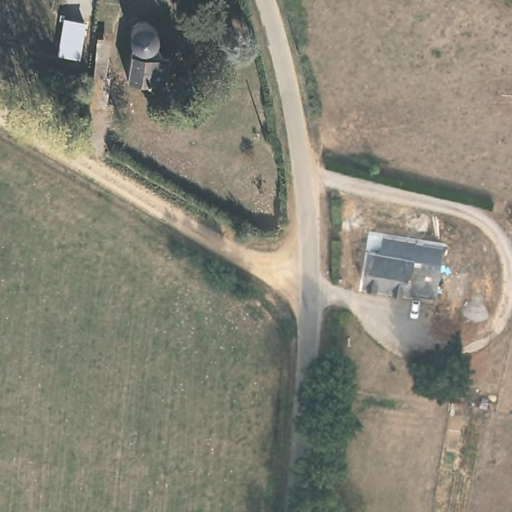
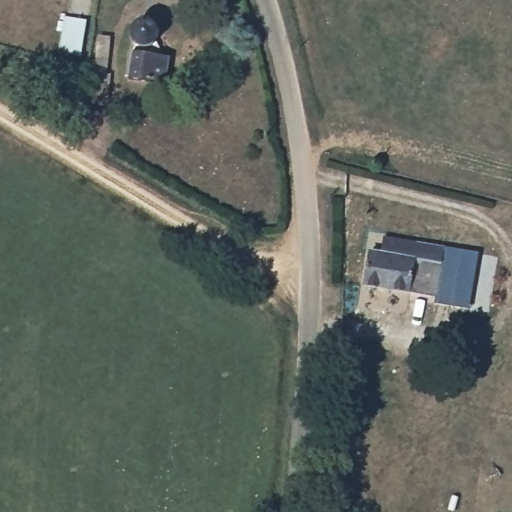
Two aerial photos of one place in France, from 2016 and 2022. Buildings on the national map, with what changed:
unchanged [(138,45),(139,35),(135,33),(133,30),(133,23),(135,21),(138,19),(141,17),(146,16),(150,17),(154,19),(156,20),(158,21),(160,24),(161,26),(162,27),(159,32),(159,39),(159,40),(167,54),(173,55),(170,83),(131,77),(135,49),(137,49),(138,45)]
unchanged [(90,102),(92,81),(96,50),(108,51),(105,73),(109,74),(108,86),(106,104),(90,102)]
unchanged [(444,247),(437,297),(367,287),(372,252),(383,254),(385,239),(444,247)]
new [(479,253),(470,310),(436,304),(437,297),(444,247),(479,253)]

